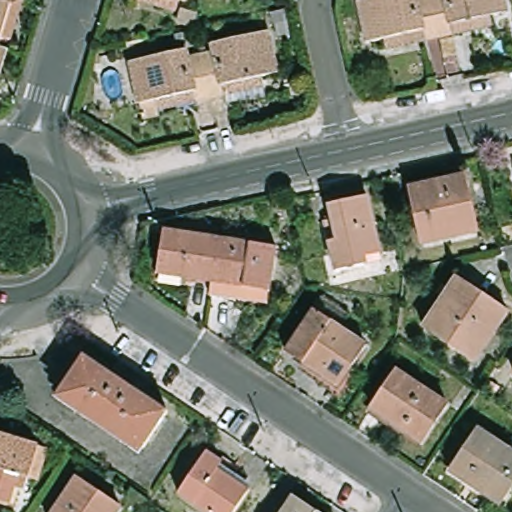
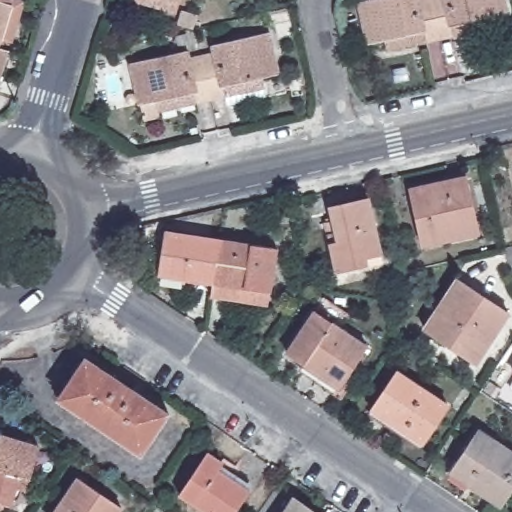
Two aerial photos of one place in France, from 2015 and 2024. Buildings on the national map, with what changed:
unchanged [(10,42),(1,40),(0,42),(0,0),(15,0),(22,2),(10,42)]
unchanged [(186,0),(183,7),(159,0),(186,0)]
unchanged [(357,4),(373,0),(428,0),(428,2),(437,41),(422,45),(383,54),(380,42),(367,45),(357,4)]
unchanged [(437,41),(428,2),(428,0),(500,0),(503,14),(488,17),(491,29),(450,38),(437,41)]
unchanged [(217,51),(215,41),(272,28),(282,70),(266,74),(270,94),(232,102),(230,94),(214,97),(212,88),(204,54),(217,51)]
unchanged [(148,117),(144,102),(134,60),(187,48),(189,57),(204,54),(212,88),(214,97),(199,101),(163,109),(164,114),(148,117)]
unchanged [(9,52),(0,82),(0,49),(9,52)]
unchanged [(428,240),(416,189),(471,175),(485,234),(466,239),(430,247),(428,240)]
unchanged [(372,265),(343,271),(335,243),(343,240),(334,206),(371,196),(386,253),(388,260),(372,265)]
unchanged [(159,275),(166,231),(219,240),(218,247),(212,283),(159,275)]
unchanged [(218,247),(219,240),(277,249),(270,292),(212,283),(218,247)]
unchanged [(474,360),(425,325),(438,306),(461,275),(465,279),(510,311),(474,360)]
unchanged [(286,351),(312,312),(365,346),(339,387),(318,373),(308,365),(286,351)]
unchanged [(165,418),(168,420),(152,445),(149,442),(145,448),(129,437),(124,444),(77,413),(82,407),(62,395),(66,390),(63,387),(78,363),(81,365),(86,357),(124,382),(128,377),(139,385),(135,390),(169,411),(165,418)]
unchanged [(372,407),(398,370),(447,404),(421,442),(398,426),(390,419),(372,407)]
unchanged [(480,430),(512,452),(512,487),(500,505),(468,482),(452,471),(457,464),(480,430)]
unchanged [(2,435),(40,446),(30,478),(20,475),(11,502),(0,499),(0,443),(2,435)]
unchanged [(209,452),(223,462),(220,467),(250,488),(234,512),(210,512),(182,492),(209,452)]
unchanged [(80,474),(123,503),(117,512),(55,512),(80,474)]
unchanged [(296,498),(317,512),(287,512),(296,498)]

